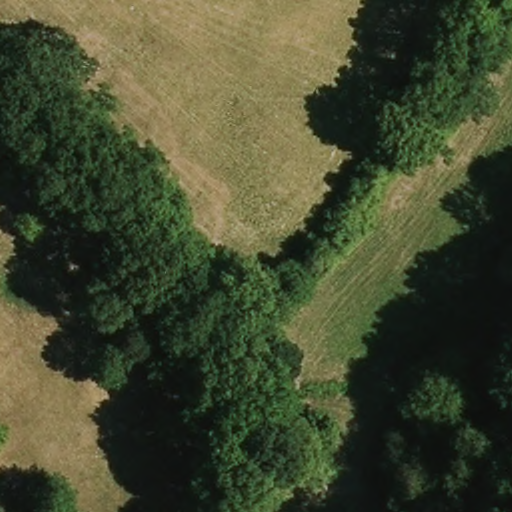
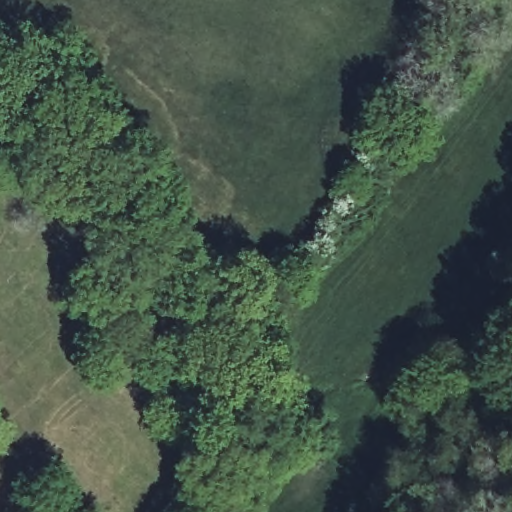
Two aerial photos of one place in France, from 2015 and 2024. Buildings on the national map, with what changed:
unchanged [(22,154),(14,146),(0,157),(0,131),(18,116),(39,138),(22,154)]

